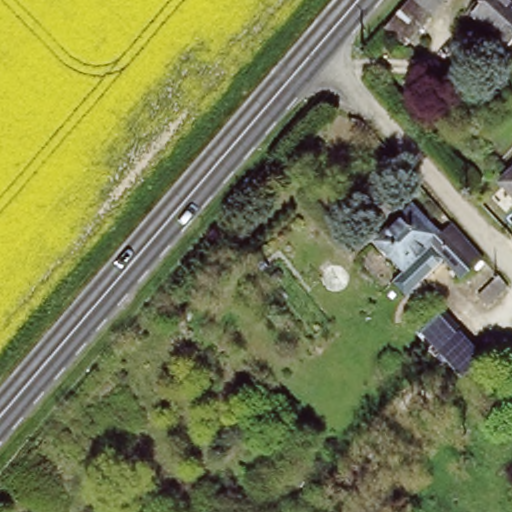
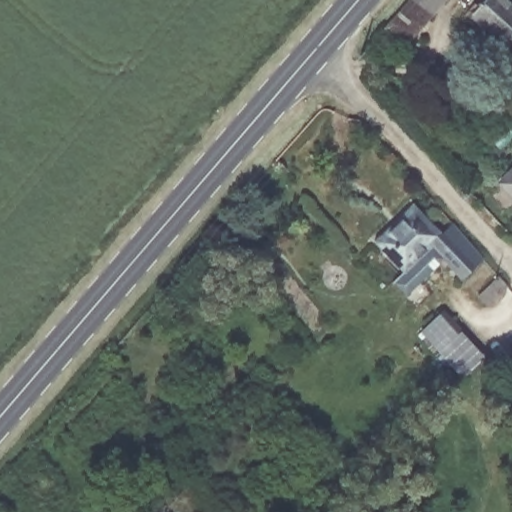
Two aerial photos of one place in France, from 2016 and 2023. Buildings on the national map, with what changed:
unchanged [(436,16),(410,46),(388,27),(412,0),(416,0),(436,16)]
unchanged [(436,16),(416,0),(449,0),(436,16)]
unchanged [(474,8),(480,0),(512,0),(512,41),(474,8)]
unchanged [(512,177),(512,196),(503,186),(512,177)]
unchanged [(442,231),(452,220),(484,258),(461,280),(443,260),(403,297),(390,282),(401,271),(373,239),(413,202),(442,231)]
unchanged [(443,307),(464,331),(439,353),(418,330),(443,307)]

